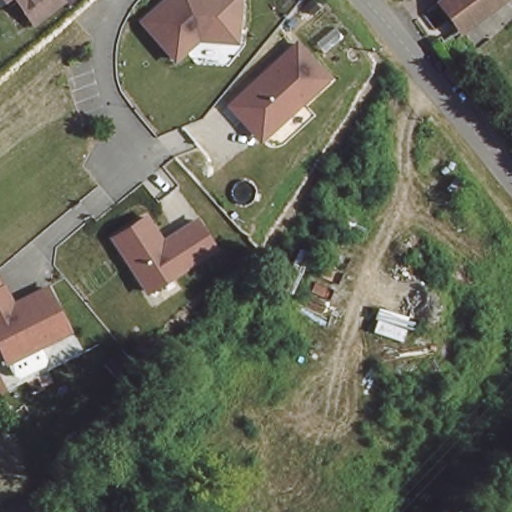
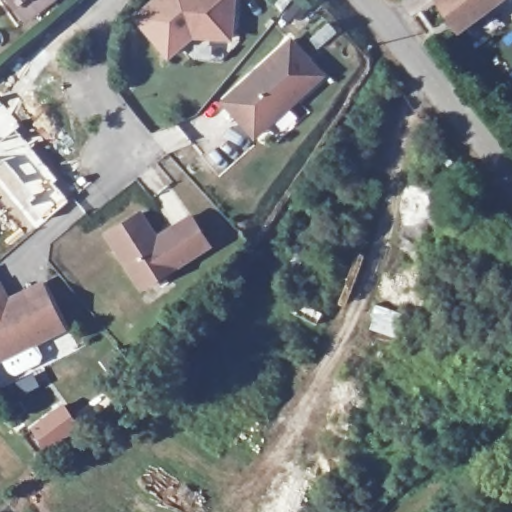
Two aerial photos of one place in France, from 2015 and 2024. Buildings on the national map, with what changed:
unchanged [(18,13),(8,0),(34,0),(18,13)]
unchanged [(231,42),(193,40),(167,60),(131,16),(150,0),(235,0),(231,42)]
unchanged [(463,28),(443,0),(499,0),(463,28)]
unchanged [(253,137),(221,98),(293,38),(324,75),(253,137)]
new [(16,129),(4,139),(0,140),(0,103),(18,126),(16,129)]
new [(16,129),(55,177),(52,180),(68,201),(35,229),(0,185),(0,140),(4,139),(16,129)]
unchanged [(211,247),(139,292),(103,236),(138,214),(154,235),(191,216),(211,247)]
unchanged [(0,278),(10,294),(40,281),(62,326),(0,358),(0,278)]
new [(60,402),(74,422),(38,448),(24,428),(60,402)]

